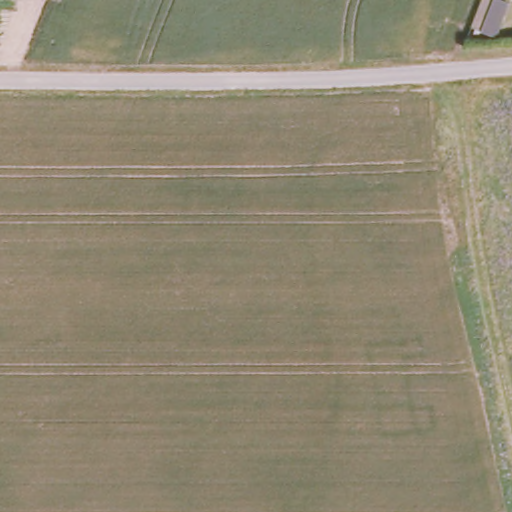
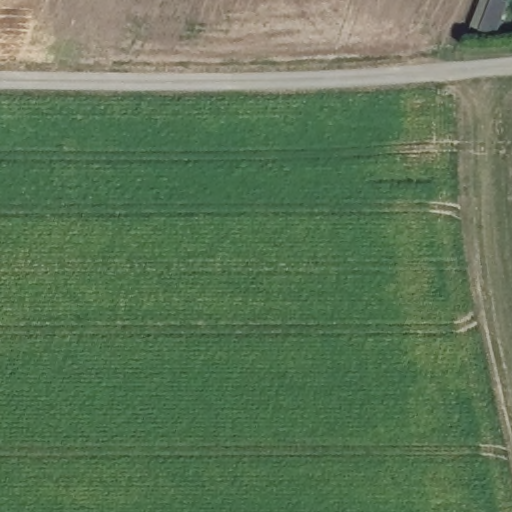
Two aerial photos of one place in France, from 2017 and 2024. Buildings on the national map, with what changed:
unchanged [(494,0),(506,0),(512,2),(497,35),(482,29),(494,0)]

